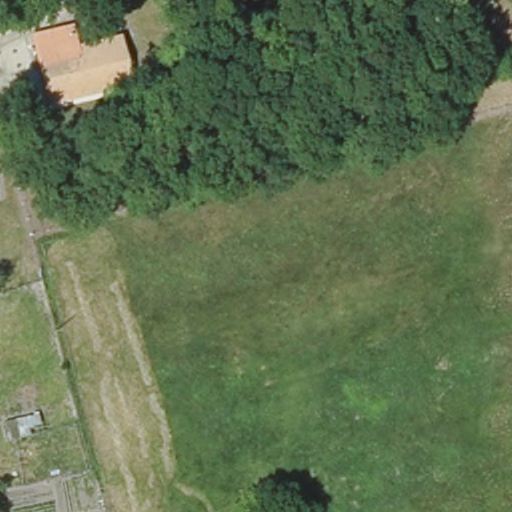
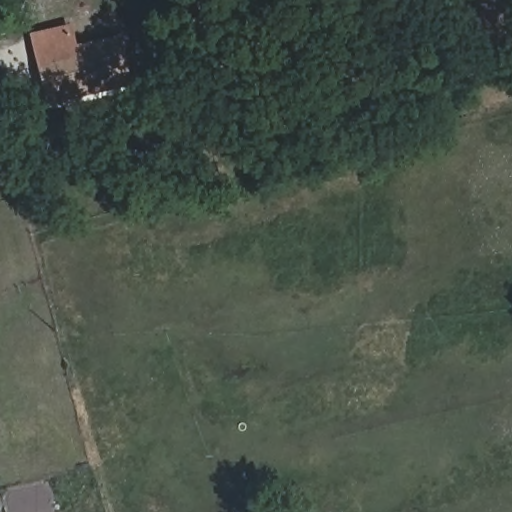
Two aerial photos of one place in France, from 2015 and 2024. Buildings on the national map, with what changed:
unchanged [(37,58),(32,36),(69,28),(74,45),(114,37),(125,84),(64,99),(48,102),(37,58)]
unchanged [(39,414),(45,430),(7,442),(4,424),(39,414)]

